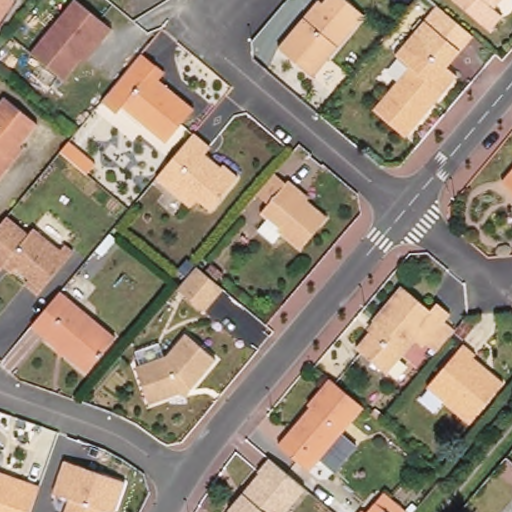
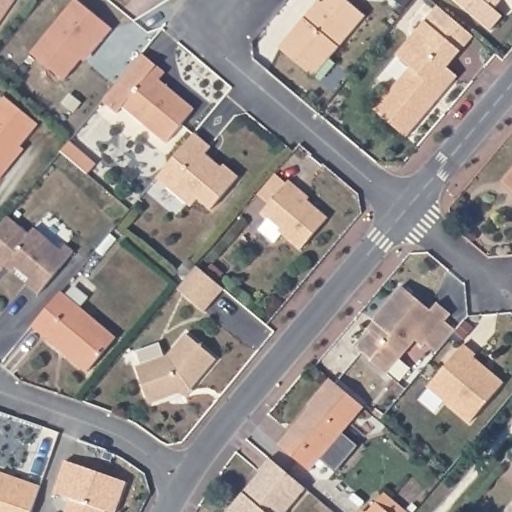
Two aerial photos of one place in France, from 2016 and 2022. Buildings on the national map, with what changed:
unchanged [(0,0),(12,0),(0,17),(0,0)]
unchanged [(101,40),(68,81),(35,55),(79,0),(80,0),(116,30),(105,42),(101,40)]
unchanged [(326,0),(345,0),(363,16),(353,29),(312,78),(278,49),(318,1),(322,5),(326,0)]
unchanged [(502,18),(490,32),(451,0),(494,0),(488,7),(502,18)]
unchanged [(397,56),(425,22),(461,52),(449,67),(459,76),(408,137),(375,110),(410,67),(397,56)]
unchanged [(162,72),(156,79),(191,108),(165,140),(122,106),(116,113),(101,102),(140,53),(162,72)]
unchanged [(40,127),(5,167),(9,170),(0,179),(0,109),(8,99),(40,127)]
unchanged [(209,147),(200,157),(206,162),(211,162),(218,167),(222,162),(236,175),(209,207),(196,196),(189,205),(156,177),(192,133),(209,147)]
unchanged [(86,175),(59,153),(67,143),(94,165),(86,175)]
unchanged [(501,182),(512,169),(512,191),(501,182)]
unchanged [(260,231),(270,219),(258,209),(285,177),(299,188),(296,191),(324,214),(298,247),(283,234),(276,243),(260,231)]
unchanged [(26,235),(32,229),(58,252),(63,246),(71,252),(36,295),(23,283),(27,279),(6,262),(0,268),(0,225),(6,217),(26,235)]
unchanged [(205,311),(177,287),(180,284),(196,265),(224,288),(205,311)]
unchanged [(432,352),(421,343),(420,345),(412,338),(384,372),(353,347),(373,322),(369,319),(398,285),(428,308),(435,300),(448,311),(441,320),(452,329),(432,352)]
unchanged [(59,292),(113,338),(85,372),(30,326),(59,292)]
unchanged [(167,362),(186,340),(215,363),(191,393),(184,389),(178,397),(150,408),(136,372),(167,362)]
unchanged [(472,357),(470,360),(500,385),(467,425),(425,390),(461,347),(472,357)]
unchanged [(326,382),(360,411),(306,475),(276,449),(300,421),(309,409),(306,407),(326,382)]
unchanged [(69,462),(127,483),(117,512),(104,512),(68,512),(71,501),(57,496),(69,462)]
unchanged [(259,476),(271,462),(307,492),(290,512),(234,512),(262,478),(259,476)]
unchanged [(25,482),(44,489),(36,512),(0,512),(0,480),(2,473),(25,482)]
unchanged [(392,512),(368,512),(378,501),(392,512)]

